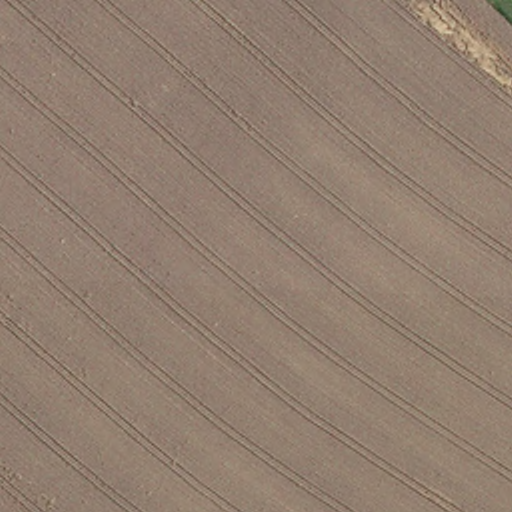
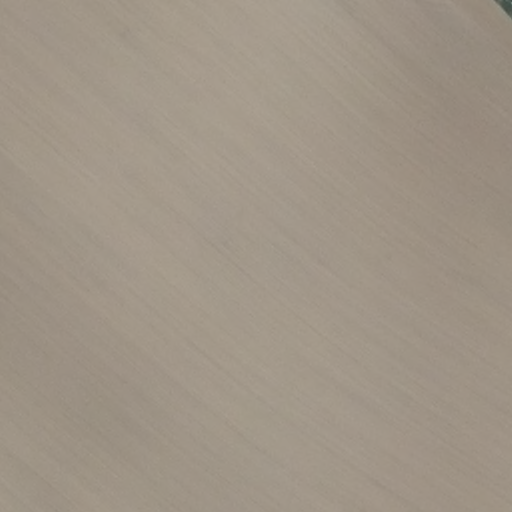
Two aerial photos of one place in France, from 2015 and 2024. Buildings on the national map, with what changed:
[]

